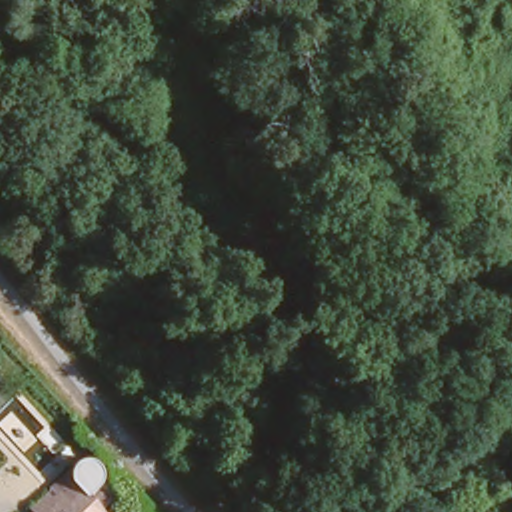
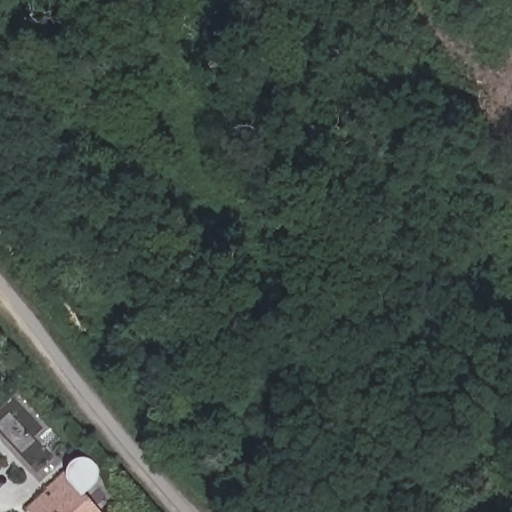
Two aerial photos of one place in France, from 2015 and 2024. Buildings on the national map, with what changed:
unchanged [(37,487),(40,490),(58,471),(59,466),(61,462),(65,458),(70,456),(75,456),(80,457),(84,460),(87,464),(89,469),(88,482),(78,492),(97,510),(99,512),(27,512),(19,505),(37,487)]

